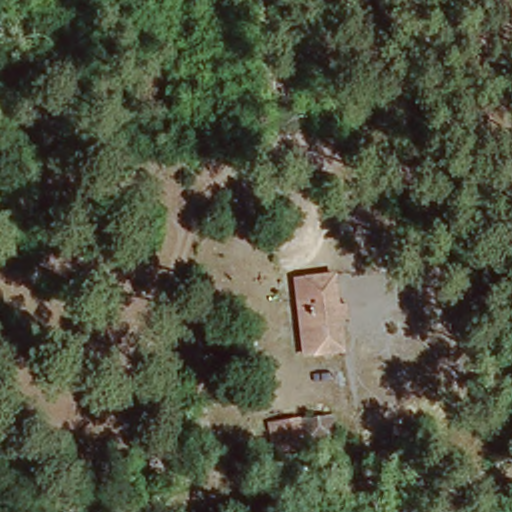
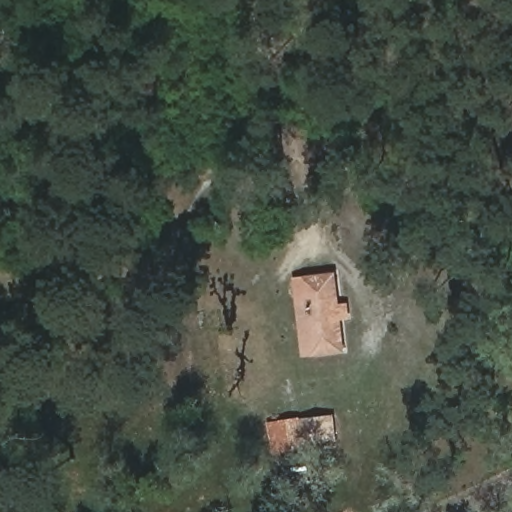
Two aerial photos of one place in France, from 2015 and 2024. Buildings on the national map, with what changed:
unchanged [(309,348),(296,266),(332,261),(344,342),(309,348)]
unchanged [(335,458),(310,455),(307,418),(333,414),(335,458)]

